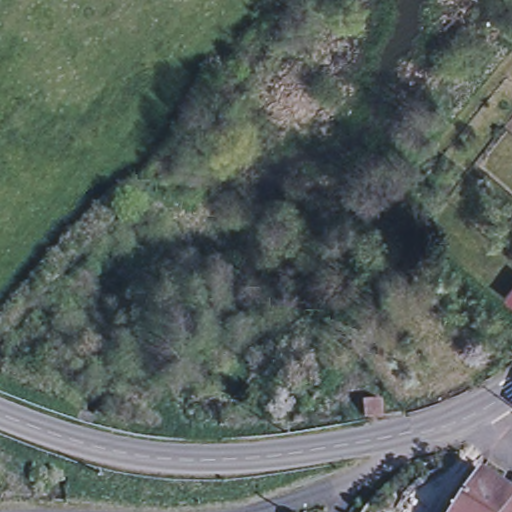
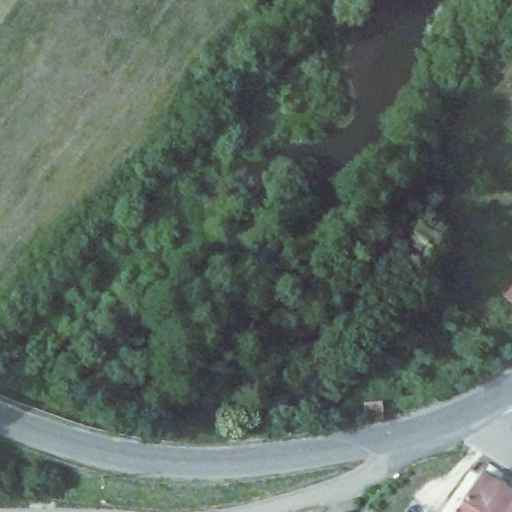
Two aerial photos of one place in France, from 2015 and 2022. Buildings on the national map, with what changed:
unchanged [(512,284),(512,303),(502,294),(512,284)]
unchanged [(385,399),(386,416),(368,417),(367,401),(385,399)]
unchanged [(488,512),(453,512),(480,474),(505,489),(488,512)]
unchanged [(512,493),(512,506),(508,512),(488,512),(505,489),(512,493)]
unchanged [(508,512),(512,506),(512,512),(508,512)]

